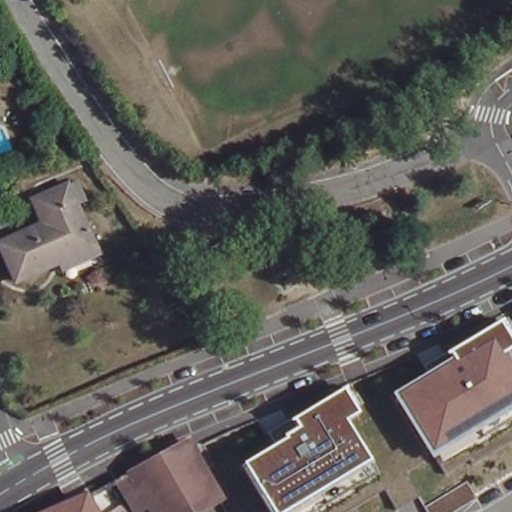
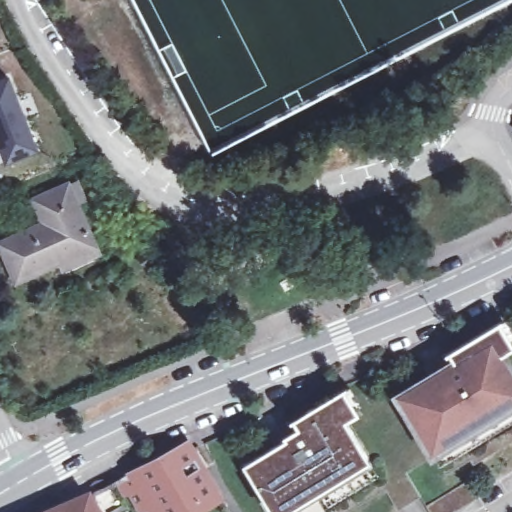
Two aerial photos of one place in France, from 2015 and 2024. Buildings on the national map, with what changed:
new [(10,73),(40,148),(4,162),(0,153),(0,77),(10,73)]
unchanged [(57,265),(54,258),(12,277),(0,248),(0,236),(43,217),(33,193),(61,181),(87,239),(92,250),(57,265)]
unchanged [(138,256),(146,250),(157,265),(149,271),(138,256)]
unchanged [(393,396),(452,361),(448,353),(500,322),(512,342),(512,351),(506,355),(512,364),(512,412),(432,460),(393,396)]
unchanged [(271,512),(243,464),(286,442),(285,438),(298,431),(292,420),(345,392),(359,416),(345,423),(370,463),(289,512),(271,512)]
unchanged [(146,488),(140,476),(196,447),(200,452),(226,496),(199,512),(161,512),(160,511),(157,512),(142,512),(131,496),(146,488)]
new [(478,497),(453,512),(429,512),(425,506),(468,480),(478,497)]
unchanged [(96,512),(67,512),(90,502),(96,512)]

